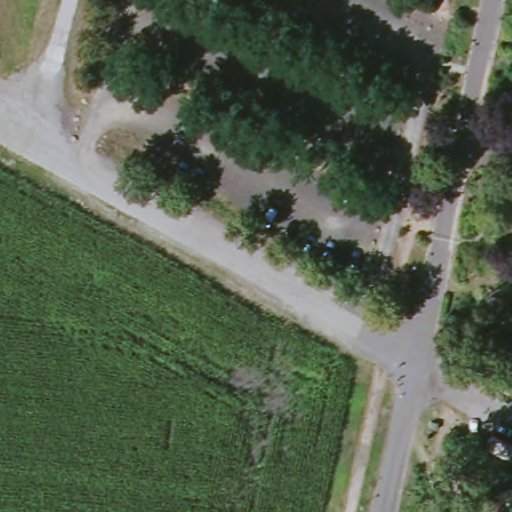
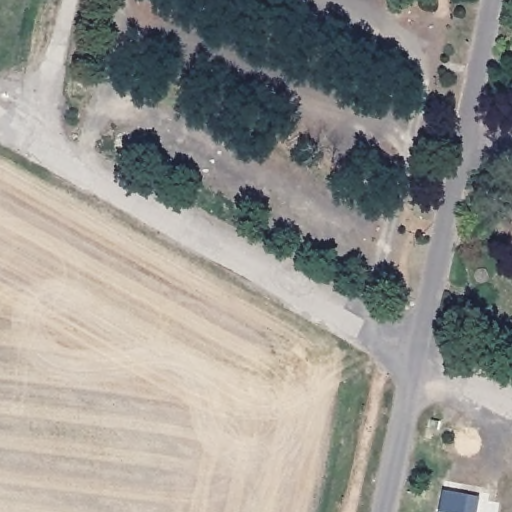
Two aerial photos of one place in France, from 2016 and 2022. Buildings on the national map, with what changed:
demolished [(459,415),(452,427),(439,421),(445,408),(459,415)]
new [(478,512),(440,512),(444,491),(480,498),(478,512)]

